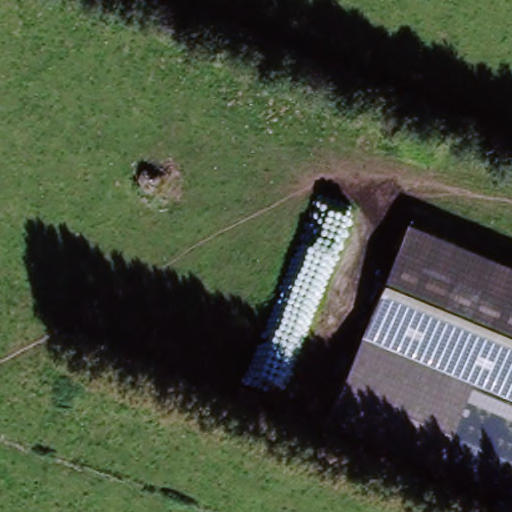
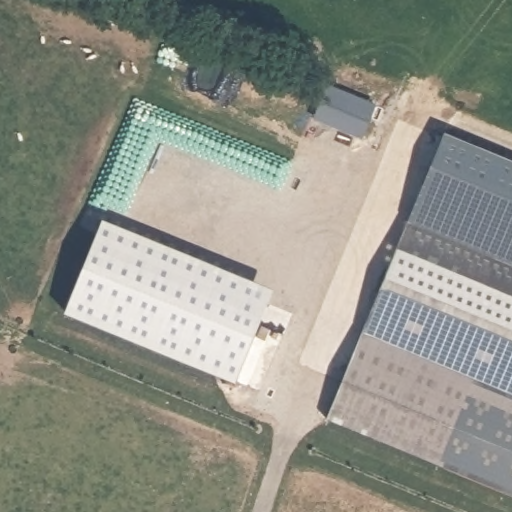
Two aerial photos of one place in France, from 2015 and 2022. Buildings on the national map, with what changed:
new [(512,229),(421,190),(447,129),(512,157),(512,229)]
new [(512,265),(409,221),(421,190),(512,229),(512,265)]
new [(276,289),(244,363),(77,291),(108,217),(276,289)]
unchanged [(512,396),(475,379),(438,468),(326,423),(409,221),(512,265),(512,396)]
new [(512,498),(438,468),(475,379),(512,396),(512,498)]

